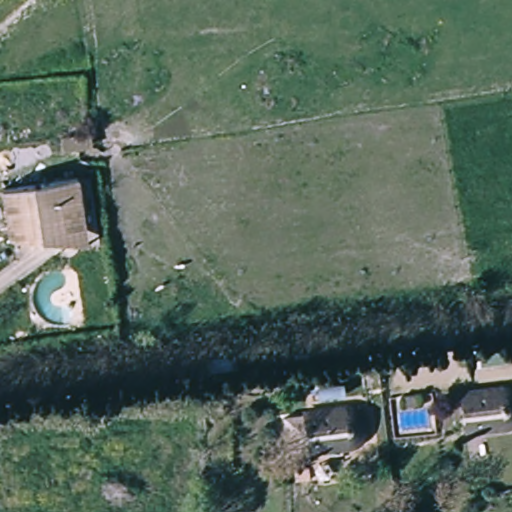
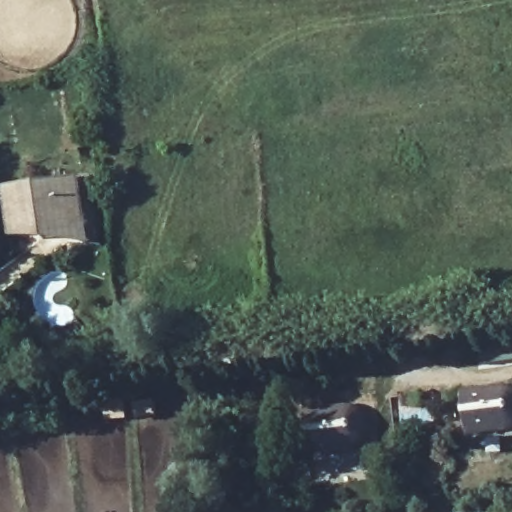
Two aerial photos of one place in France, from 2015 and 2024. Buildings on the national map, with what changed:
unchanged [(10,235),(5,187),(78,177),(85,226),(87,243),(10,235)]
unchanged [(507,391),(512,393),(512,428),(465,434),(462,395),(507,391)]
unchanged [(350,405),(364,410),(369,423),(368,436),(360,443),(310,450),(305,411),(350,405)]

